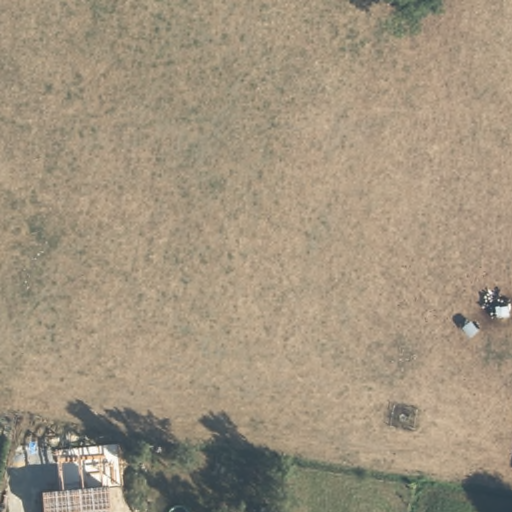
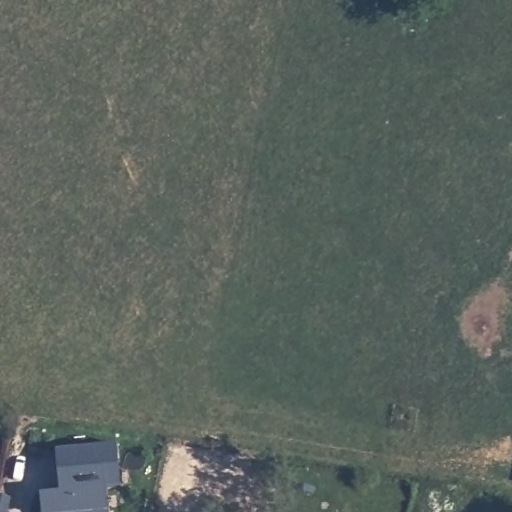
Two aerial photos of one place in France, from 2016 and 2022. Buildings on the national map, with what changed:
unchanged [(38,492),(57,490),(52,448),(115,442),(119,486),(104,487),(107,510),(108,512),(41,512),(38,492)]

